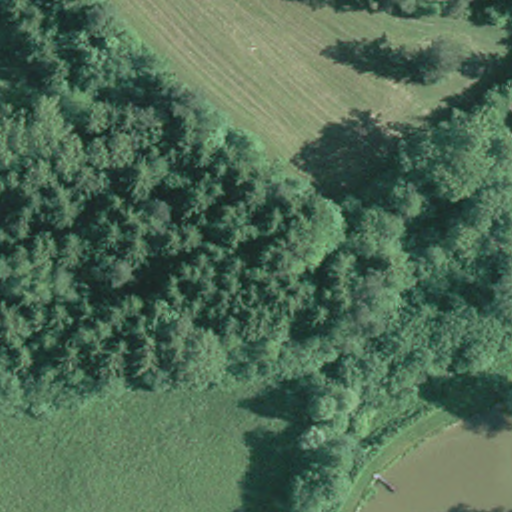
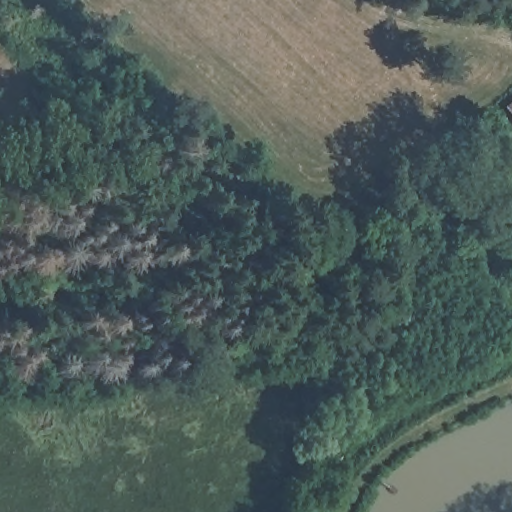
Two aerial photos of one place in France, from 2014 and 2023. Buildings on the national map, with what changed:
unchanged [(501,104),(512,96),(512,122),(501,104)]

